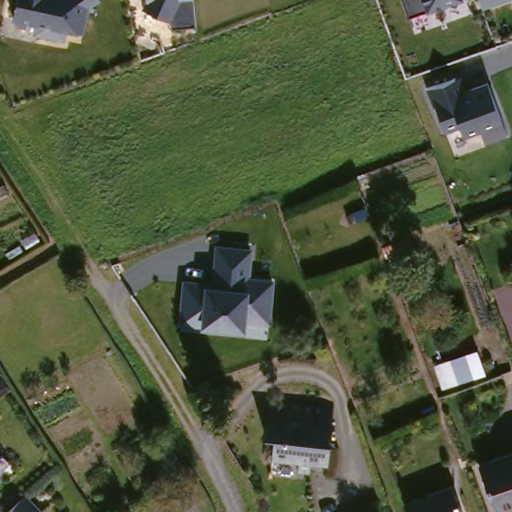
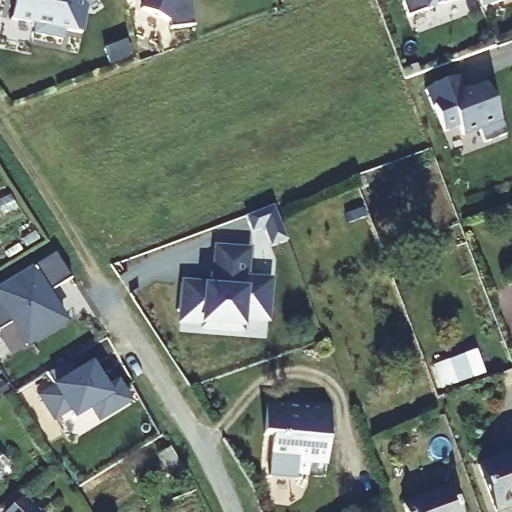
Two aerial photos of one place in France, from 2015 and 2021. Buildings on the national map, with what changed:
unchanged [(86,9),(82,34),(66,31),(65,39),(34,33),(35,27),(13,23),(17,0),(97,0),(86,9)]
unchanged [(171,28),(169,20),(144,8),(144,0),(194,0),(197,22),(171,28)]
unchanged [(408,16),(403,0),(450,0),(408,16)]
unchanged [(481,9),(479,0),(506,0),(481,9)]
unchanged [(485,141),(480,130),(463,137),(458,127),(445,132),(427,87),(457,78),(464,93),(487,83),(506,133),(485,141)]
new [(258,242),(251,222),(238,226),(234,213),(260,204),(265,217),(272,236),(258,242)]
unchanged [(243,322),(242,335),(199,332),(198,326),(178,326),(182,281),(210,283),(214,247),(249,248),(250,279),(272,281),(268,324),(243,322)]
new [(9,325),(0,331),(0,283),(33,263),(34,266),(56,254),(71,279),(51,291),(72,324),(24,351),(9,325)]
new [(56,388),(48,374),(70,360),(80,374),(91,367),(106,390),(118,383),(130,402),(101,421),(93,409),(76,420),(71,412),(56,421),(42,398),(56,388)]
unchanged [(319,464),(318,479),(302,478),(304,464),(279,462),(281,437),(267,436),(271,399),(340,405),(336,445),(334,465),(319,464)]
unchanged [(8,462),(1,469),(14,482),(0,497),(0,454),(8,462)]
unchanged [(512,508),(501,512),(498,512),(481,467),(512,457),(512,508)]
unchanged [(7,512),(29,491),(49,512),(7,512)]
unchanged [(462,512),(409,512),(408,508),(455,492),(462,512)]

